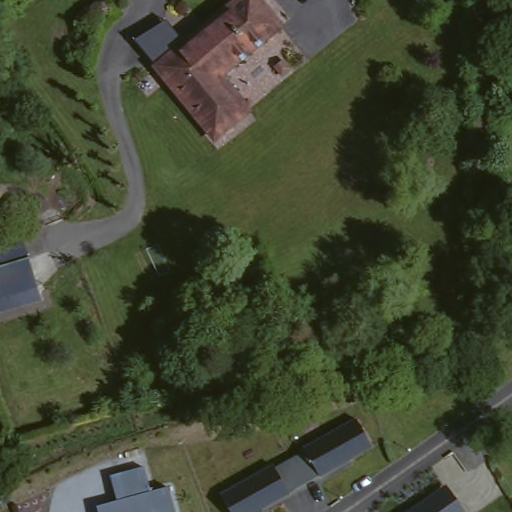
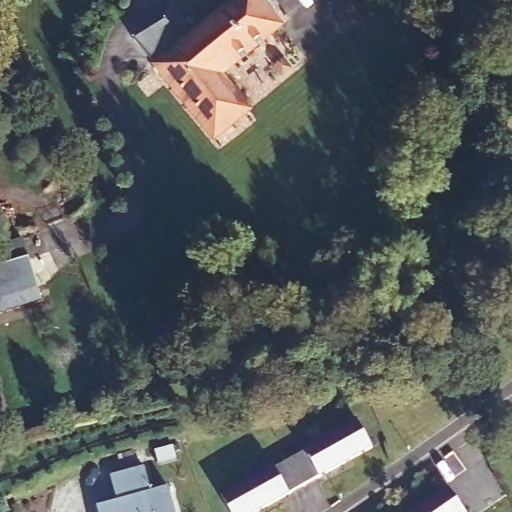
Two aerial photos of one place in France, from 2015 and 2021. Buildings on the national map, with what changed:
unchanged [(254,111),(220,139),(161,68),(245,0),(262,0),(284,28),(226,75),(254,111)]
unchanged [(0,315),(0,272),(31,262),(44,300),(0,315)]
unchanged [(223,497),(276,468),(277,471),(308,454),(306,451),(359,422),(374,451),(263,512),(232,512),(223,497)]
unchanged [(151,491),(169,486),(177,512),(98,512),(96,506),(116,501),(110,477),(145,466),(151,491)]
unchanged [(445,483),(466,512),(404,512),(445,483)]

